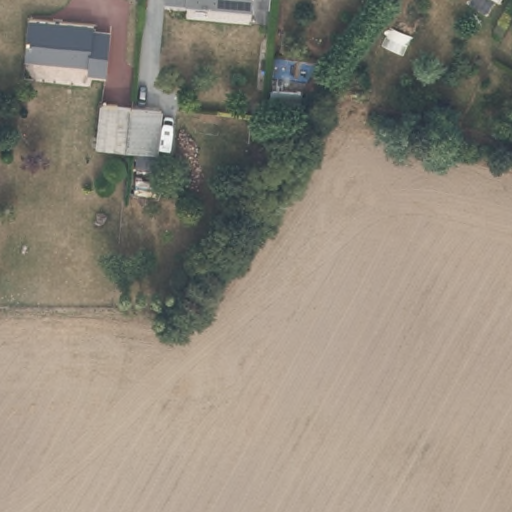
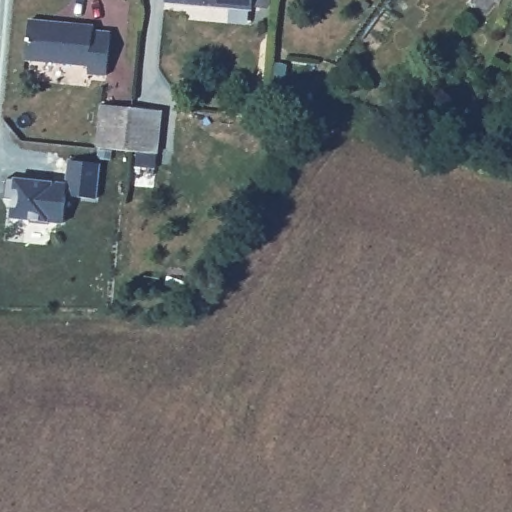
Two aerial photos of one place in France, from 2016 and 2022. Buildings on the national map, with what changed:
unchanged [(260,3),(245,0),(245,7),(171,0),(260,0),(260,3)]
unchanged [(84,70),(84,61),(24,56),(28,15),(94,22),(94,27),(109,29),(105,72),(84,70)]
unchanged [(126,147),(96,145),(99,101),(129,104),(126,147)]
unchanged [(158,108),(155,150),(126,147),(129,104),(158,106),(158,108)]
new [(11,200),(1,199),(2,176),(12,177),(66,181),(63,224),(9,218),(11,200)]

